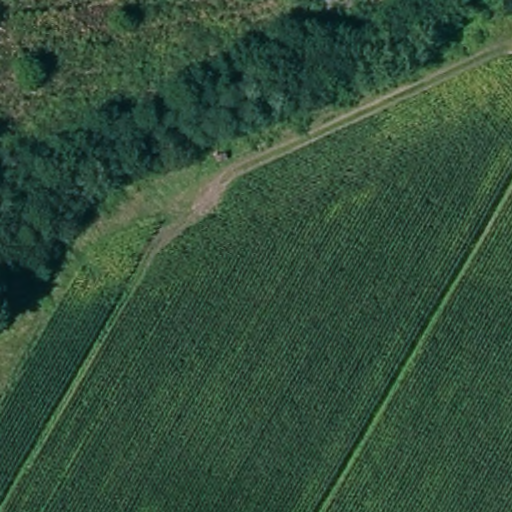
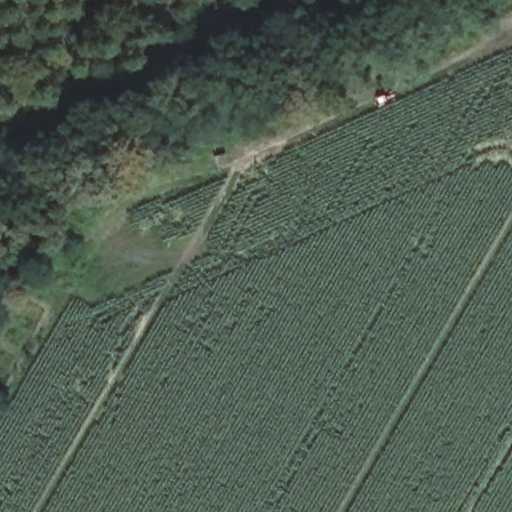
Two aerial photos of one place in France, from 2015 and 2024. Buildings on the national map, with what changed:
[]

